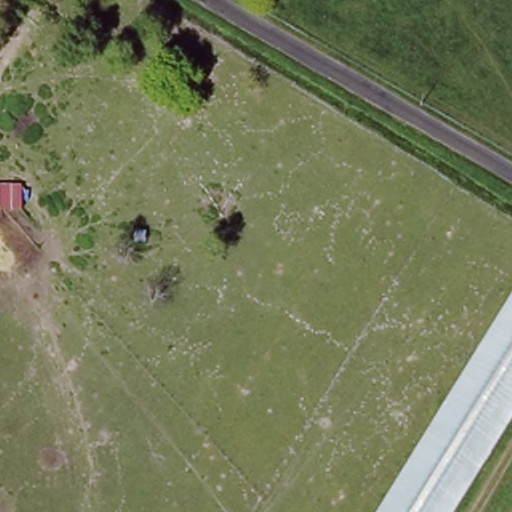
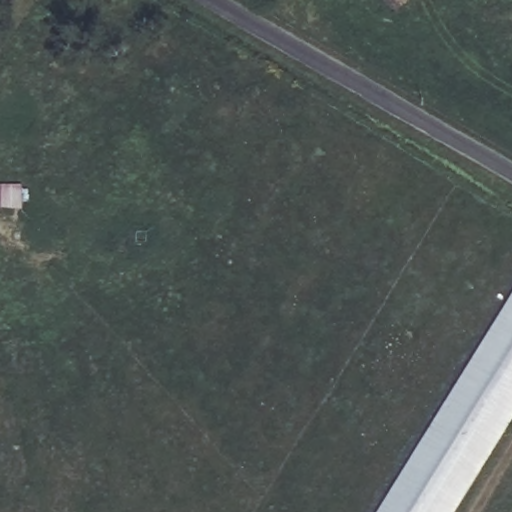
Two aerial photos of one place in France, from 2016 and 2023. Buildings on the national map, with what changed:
unchanged [(512,410),(449,512),(376,512),(512,293),(512,410)]

